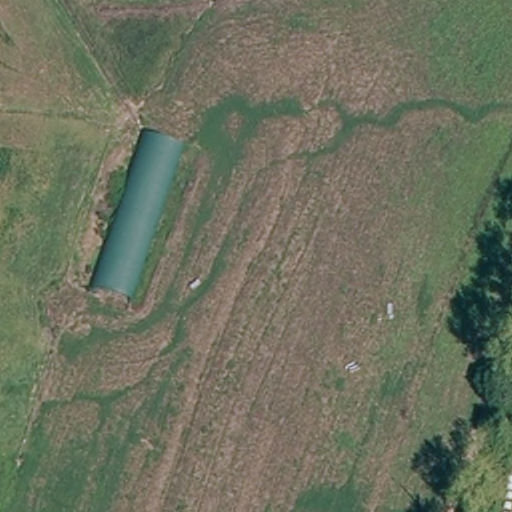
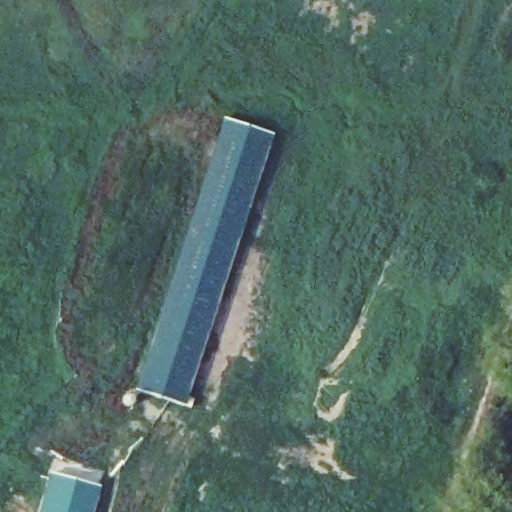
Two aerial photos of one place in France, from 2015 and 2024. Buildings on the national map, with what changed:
new [(272,135),(184,404),(136,390),(224,119),(272,135)]
demolished [(94,300),(148,135),(190,151),(139,314),(94,300)]
new [(99,487),(92,512),(40,512),(51,473),(99,487)]

